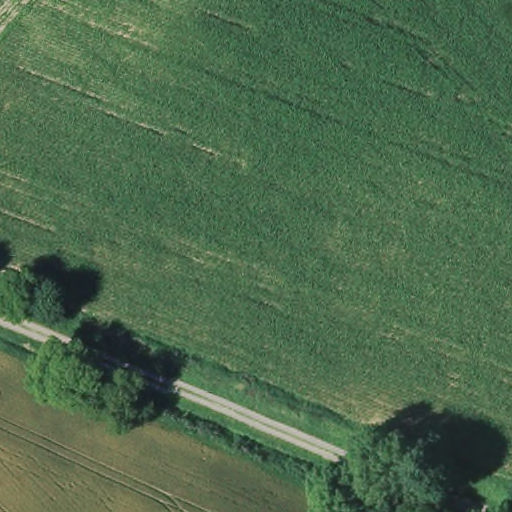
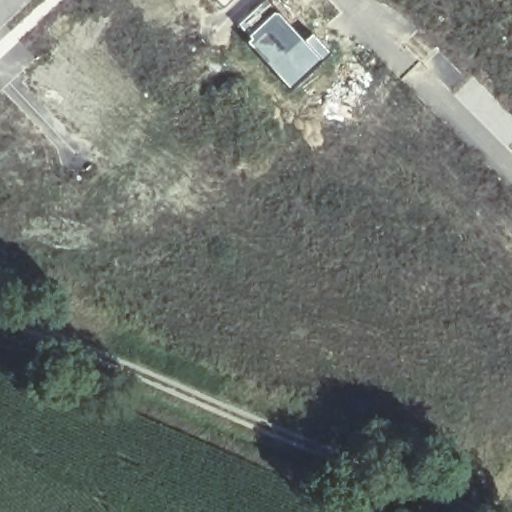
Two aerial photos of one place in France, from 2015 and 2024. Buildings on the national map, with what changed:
new [(223,11),(212,0),(234,0),(223,11)]
new [(263,0),(267,0),(303,39),(312,32),(330,53),(289,91),(243,40),(246,38),(236,26),(263,0)]

